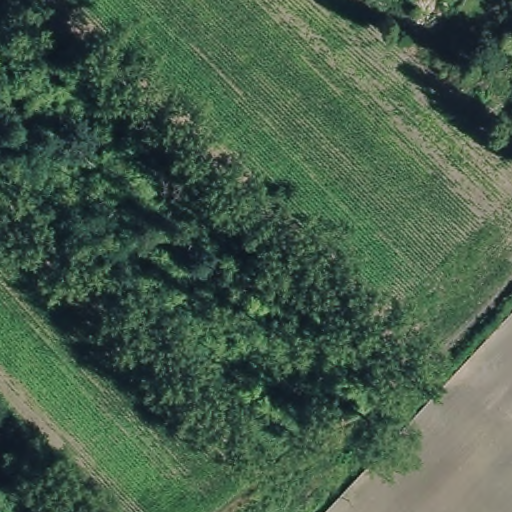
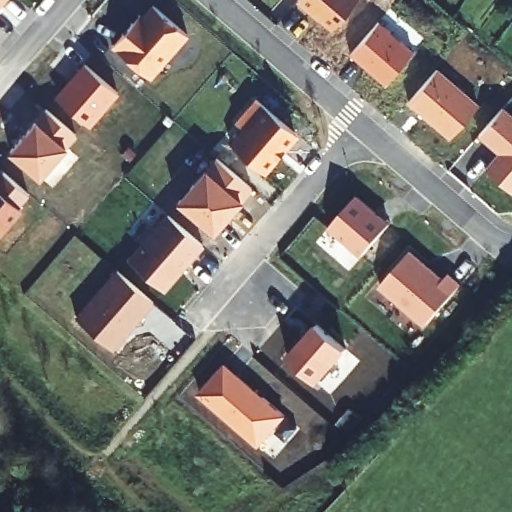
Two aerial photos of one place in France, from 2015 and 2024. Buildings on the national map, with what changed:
new [(0,0),(7,0),(0,8),(0,0)]
new [(299,0),(355,0),(332,29),(299,0)]
new [(112,44),(142,9),(146,12),(153,3),(189,33),(152,78),(112,44)]
new [(414,50),(385,83),(350,54),(380,19),(414,50)]
new [(119,92),(90,126),(55,96),(84,60),(119,92)]
new [(480,103),(450,138),(407,101),(437,67),(480,103)]
new [(300,135),(267,172),(230,141),(242,126),(235,119),(255,95),(300,135)]
new [(512,112),(512,193),(482,167),(496,151),(478,136),(505,106),(512,112)]
new [(79,135),(67,146),(41,178),(9,152),(35,119),(45,107),(79,135)]
new [(243,200),(214,235),(177,201),(207,167),(217,155),(253,188),(243,200)]
new [(20,204),(24,209),(0,235),(0,171),(2,169),(30,192),(20,204)]
new [(390,222),(362,256),(330,227),(359,194),(390,222)]
new [(205,246),(167,290),(127,257),(168,212),(205,246)]
new [(445,277),(451,272),(464,282),(427,326),(380,286),(412,247),(445,277)]
new [(155,302),(115,350),(75,316),(117,270),(155,302)]
new [(347,350),(319,383),(287,358),(317,322),(347,350)]
new [(287,415),(260,447),(197,394),(227,361),(287,415)]

